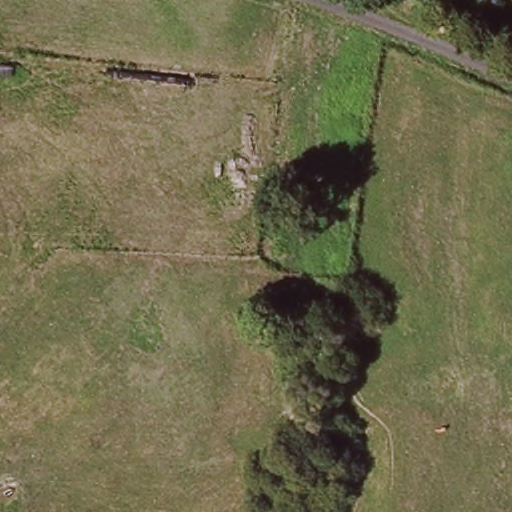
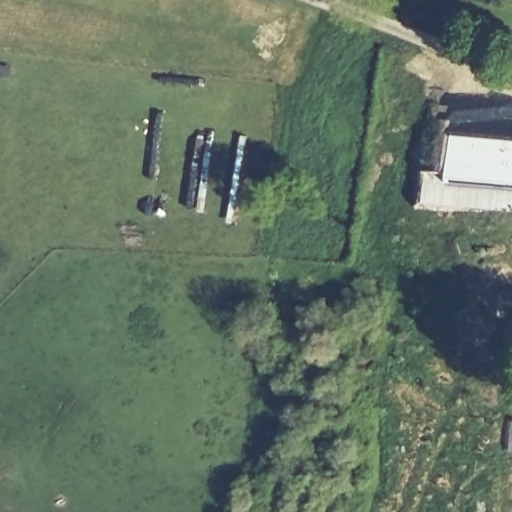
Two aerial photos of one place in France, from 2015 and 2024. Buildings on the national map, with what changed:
new [(450,131),(512,138),(512,184),(445,177),(446,169),(450,131)]
new [(446,169),(445,177),(512,184),(512,213),(420,208),(423,169),(446,169)]

